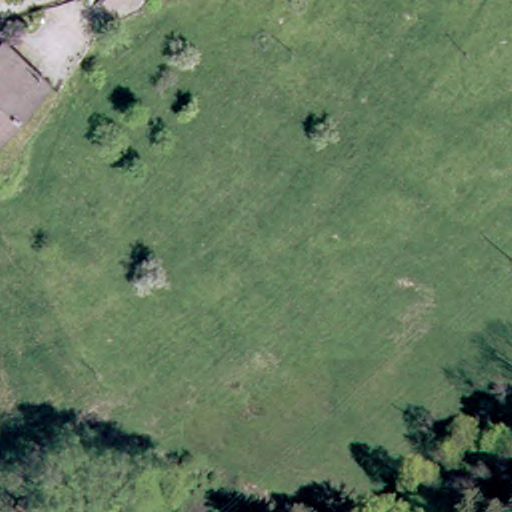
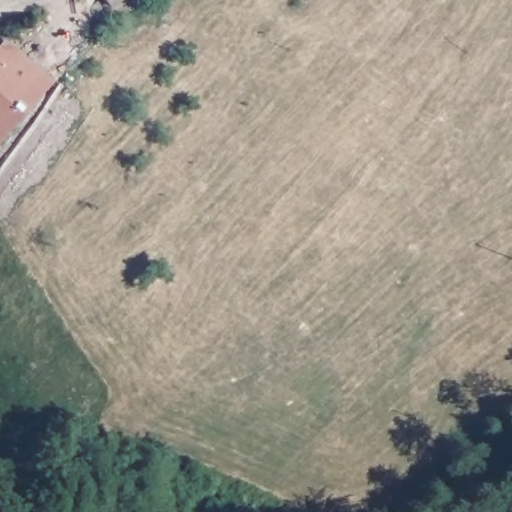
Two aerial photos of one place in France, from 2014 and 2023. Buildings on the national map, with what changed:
unchanged [(109,0),(114,0),(111,2),(109,0)]
unchanged [(8,37),(0,47),(0,29),(8,37)]
unchanged [(43,80),(24,106),(0,140),(0,47),(43,80)]

